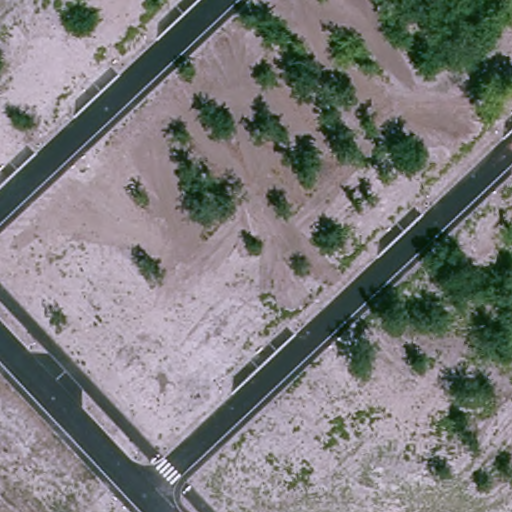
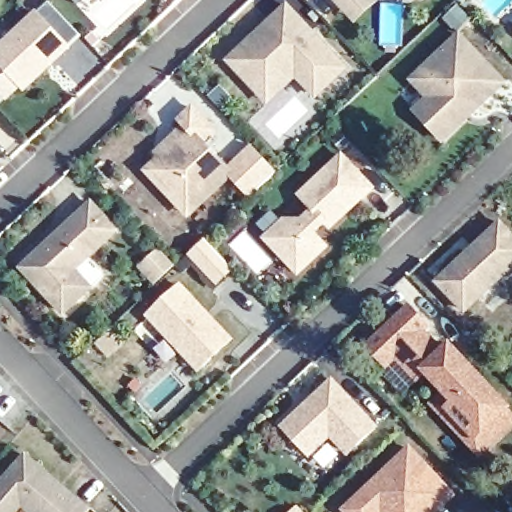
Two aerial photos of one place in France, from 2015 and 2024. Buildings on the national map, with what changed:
new [(345,8),(338,0),(375,0),(356,19),(345,8)]
new [(350,68),(316,100),(297,80),(268,106),(225,62),(287,2),(350,68)]
unchanged [(68,48),(25,89),(0,62),(0,49),(37,14),(68,48)]
new [(459,34),(504,81),(490,95),(445,47),(459,34)]
new [(445,47),(490,95),(443,139),(415,109),(429,96),(412,78),(445,47)]
new [(171,195),(147,169),(161,156),(157,151),(186,124),(180,119),(193,107),(213,129),(201,140),(232,173),(205,198),(188,214),(171,195)]
unchanged [(284,220),(302,221),(315,209),(301,194),(343,155),(372,187),(331,226),(326,220),(313,233),(326,247),(299,272),(266,238),(284,220)]
new [(93,203),(118,229),(107,239),(89,257),(105,274),(65,313),(23,268),(57,236),(93,203)]
new [(467,255),(470,258),(477,250),(475,248),(494,230),(512,249),(512,267),(466,310),(439,282),(467,255)]
new [(206,239),(233,268),(218,282),(191,253),(206,239)]
new [(162,252),(176,267),(158,284),(144,269),(162,252)]
new [(182,287),(232,339),(201,369),(150,316),(182,287)]
new [(411,309),(428,327),(423,331),(444,353),(451,346),(510,408),(478,438),(450,409),(456,402),(427,371),(419,379),(397,356),(388,365),(370,347),(411,309)]
new [(334,381),(377,427),(350,453),(333,434),(312,454),(286,427),(334,381)]
new [(436,512),(384,512),(383,512),(349,512),(346,509),(411,449),(442,482),(454,494),(436,512)]
new [(89,510),(87,512),(32,512),(23,504),(16,512),(0,512),(0,486),(26,456),(89,510)]

